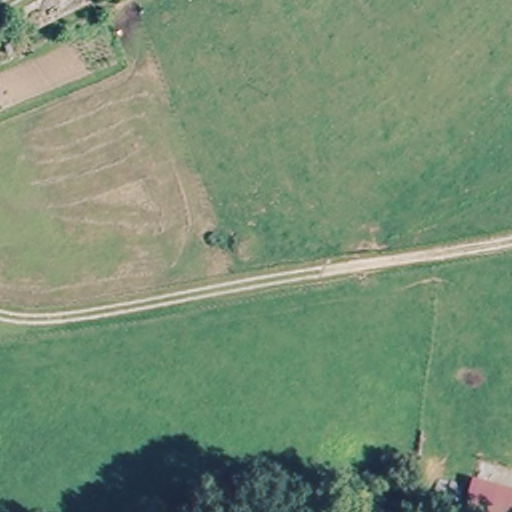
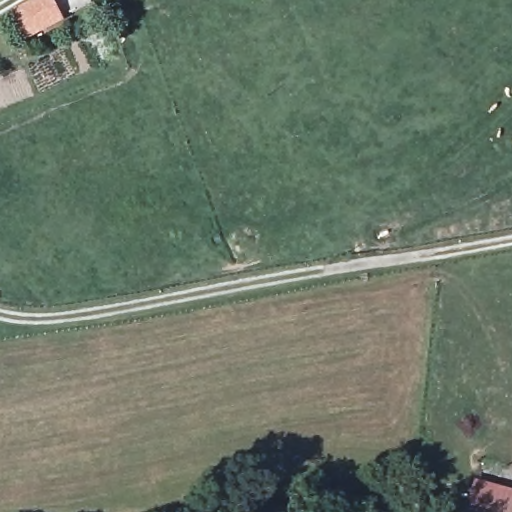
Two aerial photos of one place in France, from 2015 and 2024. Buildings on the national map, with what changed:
new [(14,20),(16,17),(13,11),(34,0),(56,0),(66,21),(29,40),(17,20),(15,22),(14,20)]
unchanged [(467,482),(512,489),(512,512),(462,512),(467,482)]

